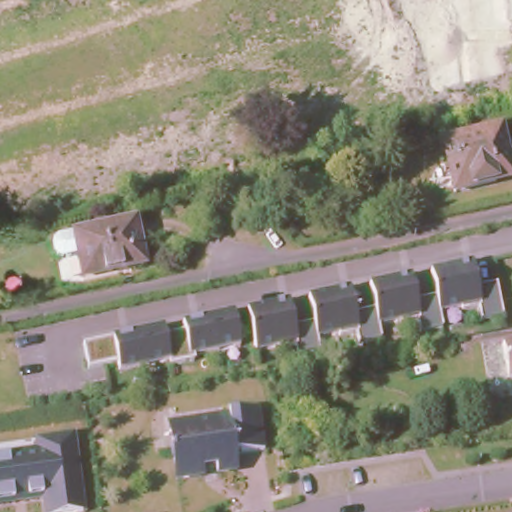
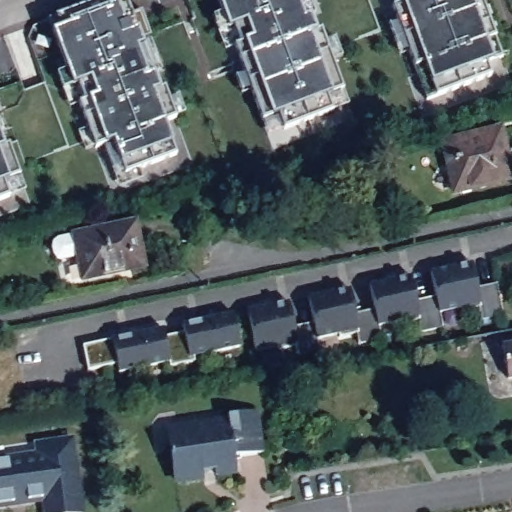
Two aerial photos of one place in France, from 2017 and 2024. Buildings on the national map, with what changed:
new [(102,0),(129,0),(134,12),(143,8),(165,70),(160,72),(169,95),(180,94),(187,112),(178,117),(194,163),(167,171),(168,177),(158,179),(155,175),(113,192),(96,147),(86,151),(58,74),(70,69),(49,19),(102,0)]
new [(321,12),(315,15),(326,40),(335,37),(343,55),(334,60),(354,116),(326,127),(328,132),(316,136),(314,132),(274,149),(251,90),(242,94),(213,17),(225,12),(220,0),(317,0),(321,12)]
new [(510,82),(486,91),(488,95),(477,100),(475,95),(422,115),(380,0),(480,0),(510,82)]
demolished [(461,8),(460,0),(494,0),(461,8)]
new [(9,127),(3,130),(32,202),(6,212),(7,216),(0,220),(0,102),(9,127)]
unchanged [(445,138),(483,128),(484,131),(500,127),(511,172),(499,175),(500,178),(453,190),(445,157),(448,156),(445,138)]
unchanged [(147,263),(92,275),(89,263),(82,264),(76,232),(138,220),(147,263)]
unchanged [(286,301),(293,328),(311,324),(306,298),(346,287),(357,315),(371,311),(367,287),(410,275),(417,300),(433,296),(430,272),(471,262),(477,289),(494,285),(501,315),(484,319),(480,303),(440,313),(442,328),(421,331),(418,316),(379,325),(381,339),(360,343),(358,330),(316,338),(320,352),(298,356),(296,342),(256,351),(247,310),(286,301)]
unchanged [(111,340),(163,328),(165,337),(183,334),(181,325),(230,313),(238,347),(168,362),(117,373),(115,365),(90,370),(83,346),(111,340)]
unchanged [(512,347),(512,380),(506,348),(512,347)]
unchanged [(176,480),(172,458),(170,458),(168,451),(171,451),(168,429),(227,420),(227,415),(256,411),(262,451),(233,456),(236,471),(215,474),(202,475),(176,480)]
unchanged [(30,457),(28,442),(72,439),(79,512),(42,512),(41,505),(0,510),(0,460),(30,457)]

